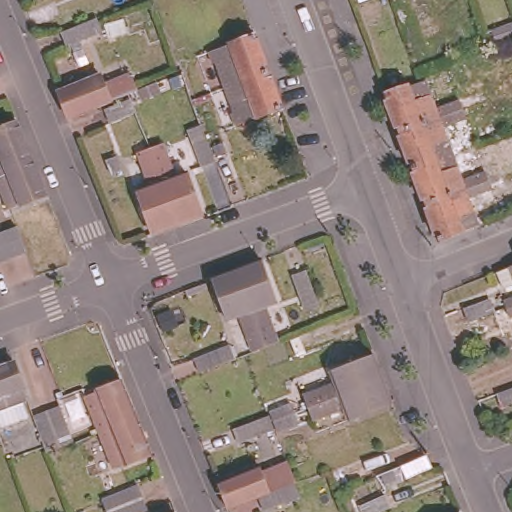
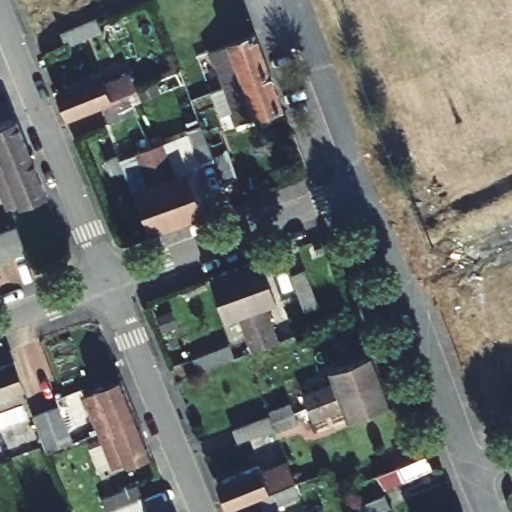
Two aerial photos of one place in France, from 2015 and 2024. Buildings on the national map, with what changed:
unchanged [(98,30),(63,45),(58,32),(93,17),(98,30)]
unchanged [(215,61),(211,62),(207,50),(255,33),(267,65),(268,69),(224,85),(215,61)]
unchanged [(268,69),(282,106),(234,124),(230,112),(233,111),(224,85),(268,69)]
unchanged [(42,90),(85,73),(88,84),(115,74),(120,90),(113,92),(53,117),(42,90)]
demolished [(393,131),(380,92),(416,78),(420,76),(426,93),(425,93),(430,107),(454,98),(457,107),(393,131)]
unchanged [(90,108),(115,96),(120,111),(95,122),(90,108)]
demolished [(393,131),(457,107),(461,117),(436,126),(441,140),(443,139),(447,150),(407,166),(393,131)]
unchanged [(21,115),(36,152),(0,167),(0,124),(21,115)]
unchanged [(223,181),(215,161),(202,166),(190,131),(202,126),(213,154),(226,148),(236,175),(223,181)]
unchanged [(163,143),(175,175),(186,171),(202,214),(177,223),(150,149),(163,143)]
unchanged [(177,223),(152,232),(136,189),(147,185),(137,154),(150,149),(177,223)]
demolished [(452,164),(450,165),(456,179),(480,170),(483,178),(420,202),(407,166),(447,150),(452,164)]
unchanged [(51,189),(25,199),(24,198),(12,202),(0,173),(0,167),(36,152),(51,189)]
unchanged [(121,169),(110,172),(105,161),(116,157),(121,169)]
demolished [(487,189),(463,198),(468,211),(470,210),(475,222),(458,229),(433,238),(420,202),(483,178),(487,189)]
unchanged [(2,230),(14,226),(23,251),(11,255),(0,259),(0,231),(2,230)]
unchanged [(265,346),(235,267),(260,258),(276,302),(264,307),(276,341),(265,346)]
demolished [(512,263),(512,280),(506,265),(512,263)]
unchanged [(251,351),(239,315),(227,319),(210,276),(235,267),(265,346),(251,351)]
unchanged [(319,306),(306,311),(292,274),(306,270),(319,306)]
demolished [(503,298),(512,294),(512,305),(506,307),(503,298)]
demolished [(489,297),(493,309),(467,319),(462,307),(489,297)]
demolished [(506,307),(512,305),(512,317),(510,317),(506,307)]
demolished [(332,337),(326,323),(355,312),(360,327),(332,337)]
demolished [(500,327),(474,338),(469,324),(495,314),(500,327)]
unchanged [(193,359),(229,346),(233,357),(233,359),(198,372),(197,371),(193,359)]
unchanged [(333,382),(329,369),(372,353),(382,377),(308,405),(303,393),(333,382)]
unchanged [(10,355),(23,392),(0,401),(0,359),(10,355)]
unchanged [(90,391),(101,387),(101,384),(126,374),(128,377),(142,412),(104,427),(90,391)]
unchanged [(391,401),(347,418),(343,407),(313,419),(308,405),(382,377),(391,401)]
unchanged [(277,429),(273,418),(270,409),(290,401),(293,411),(297,421),(277,429)]
unchanged [(33,413),(47,409),(59,404),(72,441),(60,445),(47,450),(33,413)]
unchanged [(156,448),(118,462),(104,427),(142,412),(156,448)]
unchanged [(270,419),(274,429),(237,443),(233,430),(269,416),(270,419)]
unchanged [(405,479),(400,465),(420,456),(426,453),(432,467),(405,479)]
unchanged [(263,510),(258,496),(227,509),(216,482),(259,465),(262,473),(288,464),(295,482),(293,482),(300,497),(263,510)]
unchanged [(107,512),(102,500),(137,486),(142,498),(146,511),(144,512),(107,512)]

